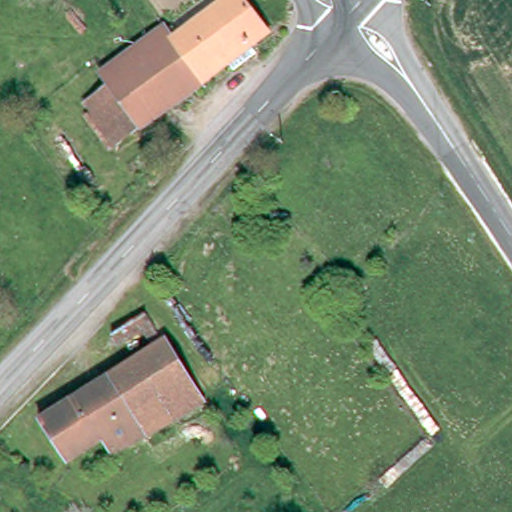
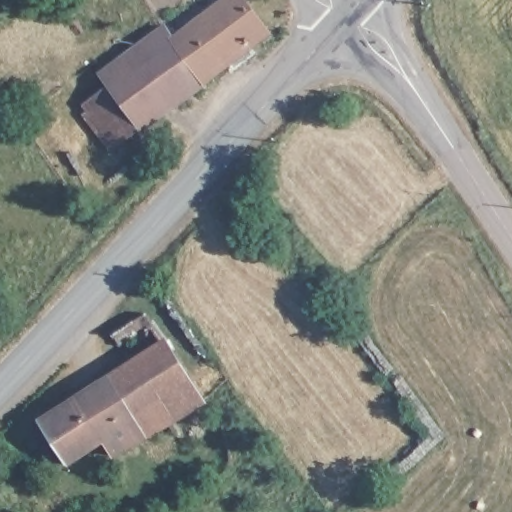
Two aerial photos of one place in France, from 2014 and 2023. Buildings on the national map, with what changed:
unchanged [(229,68),(142,132),(110,89),(101,78),(165,30),(172,41),(229,0),(240,0),(269,38),(251,51),(229,68)]
unchanged [(142,132),(110,155),(86,123),(94,118),(86,108),(110,89),(142,132)]
unchanged [(127,458),(115,442),(80,464),(47,415),(135,356),(122,338),(154,316),(166,335),(214,401),(127,458)]

